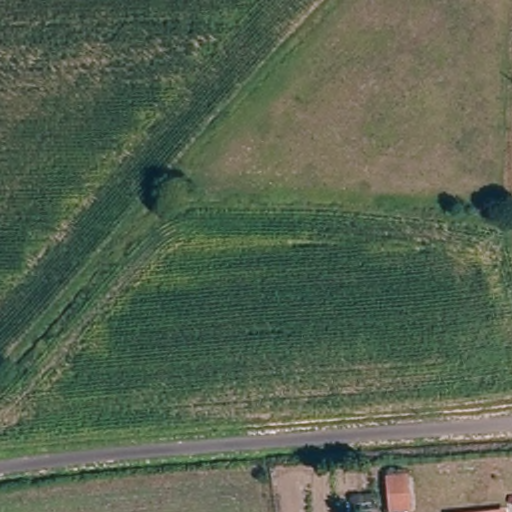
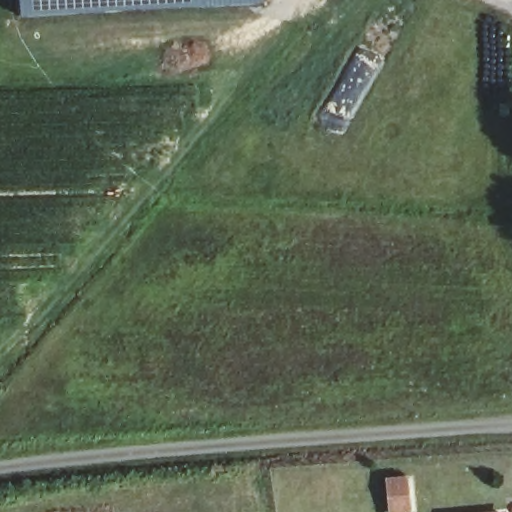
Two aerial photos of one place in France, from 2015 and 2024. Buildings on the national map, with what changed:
new [(22,14),(22,0),(205,0),(205,4),(22,14)]
new [(205,0),(263,0),(263,1),(205,4),(205,0)]
unchanged [(387,481),(410,481),(410,490),(411,512),(389,512),(388,491),(387,481)]
demolished [(395,512),(373,512),(395,511),(395,512)]

